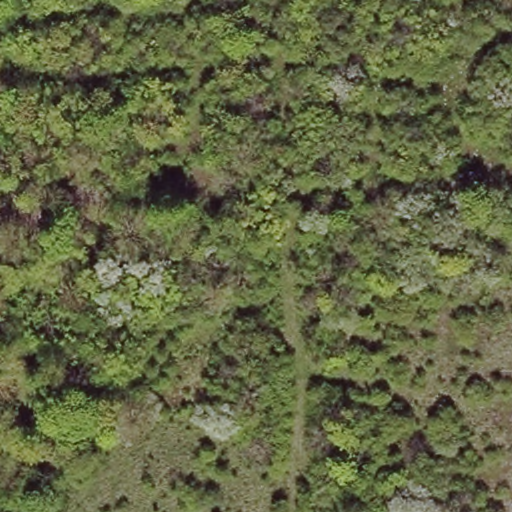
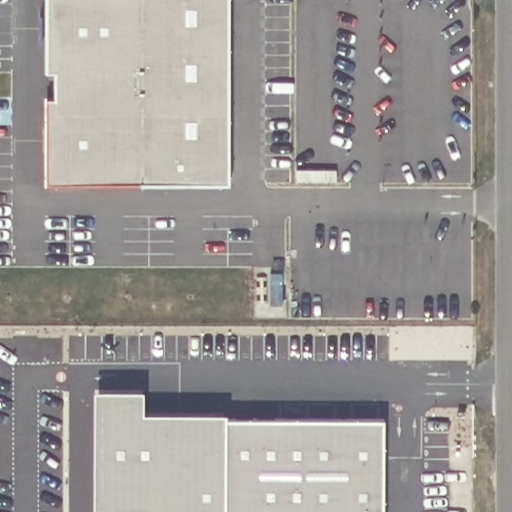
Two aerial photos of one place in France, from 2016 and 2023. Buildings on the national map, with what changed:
new [(46,97),(56,97),(56,71),(48,70),(48,0),(232,0),(231,184),(48,185),(46,97)]
new [(95,389),(146,389),(145,412),(228,412),(229,417),(387,417),(386,512),(95,512),(95,389)]

